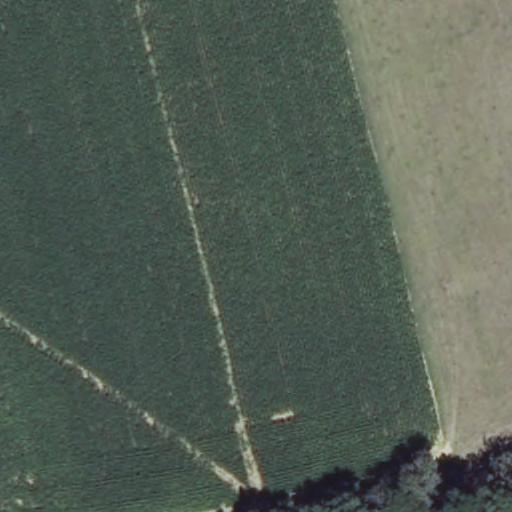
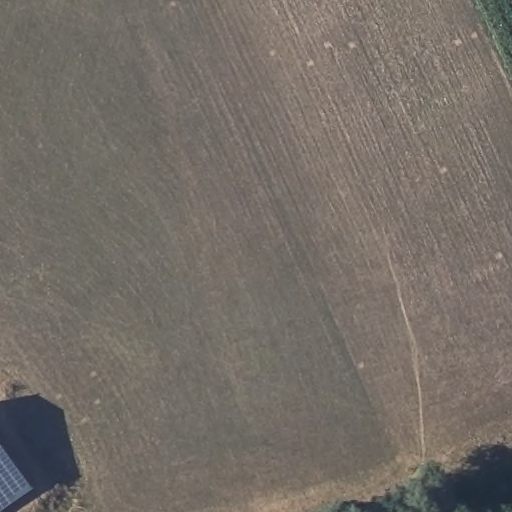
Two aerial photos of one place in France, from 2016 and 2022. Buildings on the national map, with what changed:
new [(28,484),(0,504),(0,445),(28,484)]

